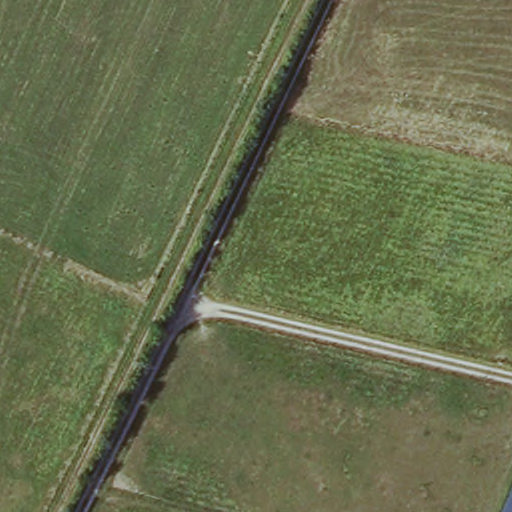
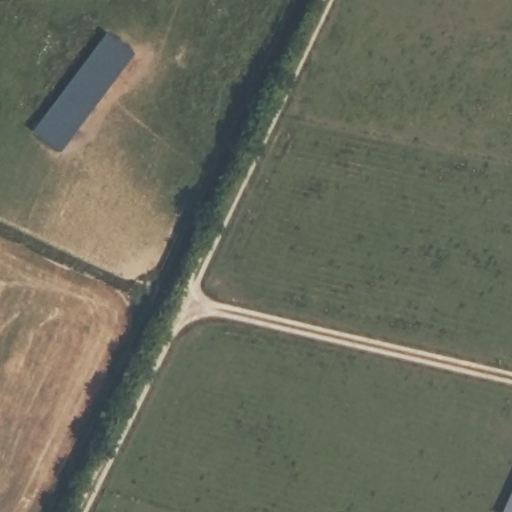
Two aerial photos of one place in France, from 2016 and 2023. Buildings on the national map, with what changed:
new [(108,33),(134,53),(60,151),(34,131),(108,33)]
unchanged [(512,497),(512,512),(508,512),(506,511),(512,497)]

